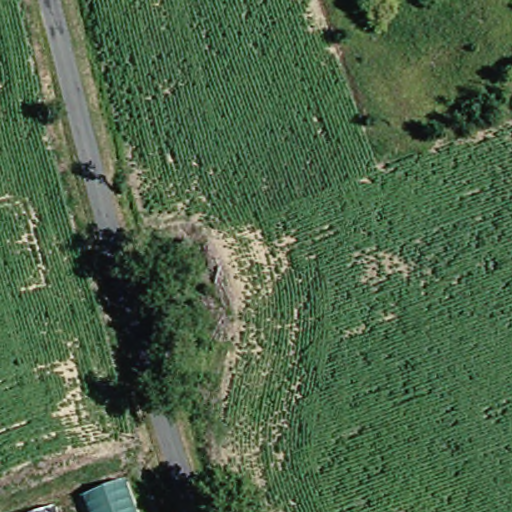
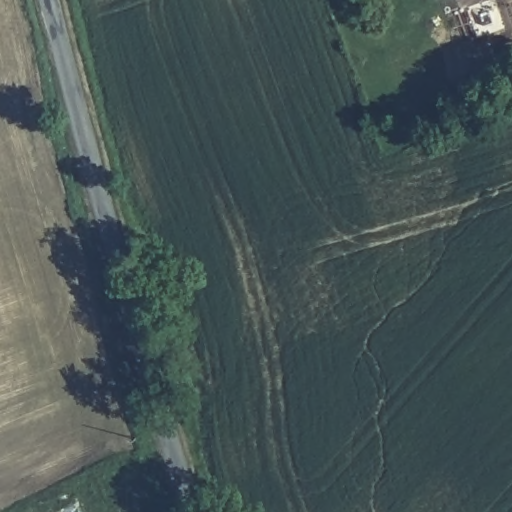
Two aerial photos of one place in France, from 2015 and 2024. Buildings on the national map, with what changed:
demolished [(134,512),(86,512),(81,498),(124,483),(134,512)]
demolished [(55,507),(57,512),(43,512),(55,507)]

